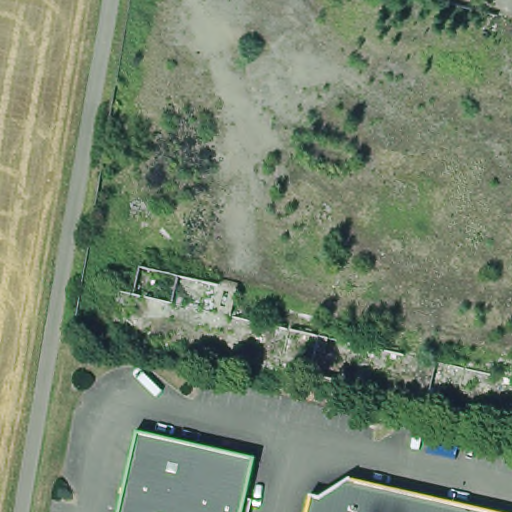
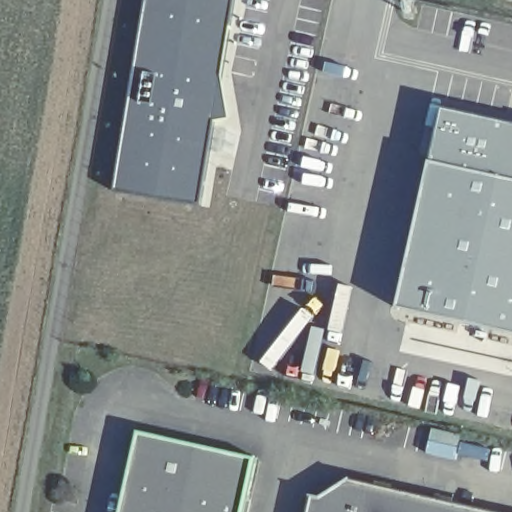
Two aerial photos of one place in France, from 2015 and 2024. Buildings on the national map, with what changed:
new [(224,119),(206,120),(194,204),(110,190),(142,0),(230,0),(216,74),(224,119)]
new [(512,124),(512,334),(400,309),(444,108),(512,124)]
demolished [(143,264),(242,286),(235,313),(137,291),(143,264)]
demolished [(116,286),(137,291),(235,313),(512,376),(512,415),(108,325),(116,286)]
unchanged [(244,512),(119,512),(137,433),(255,461),(244,512)]
unchanged [(310,494),(318,496),(347,477),(500,512),(306,512),(310,494)]

